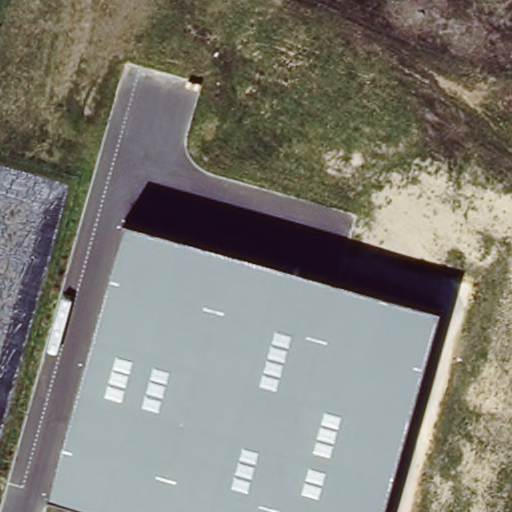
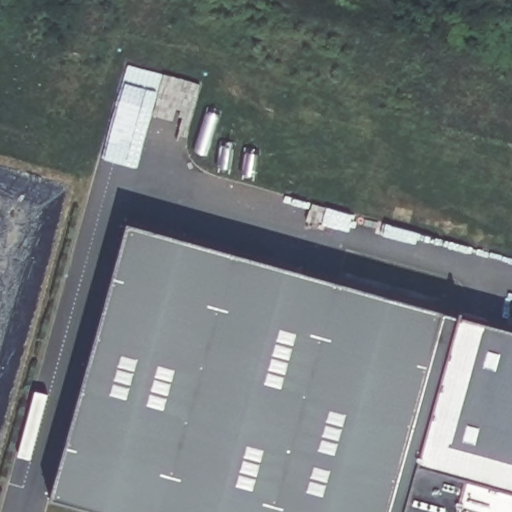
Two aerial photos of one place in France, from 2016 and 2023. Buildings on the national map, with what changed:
unchanged [(440,309),(383,512),(113,512),(51,494),(127,220),(440,309)]
new [(383,512),(440,309),(512,328),(512,512),(383,512)]

